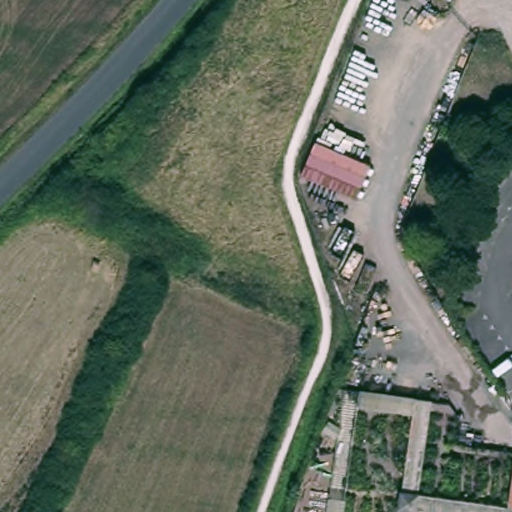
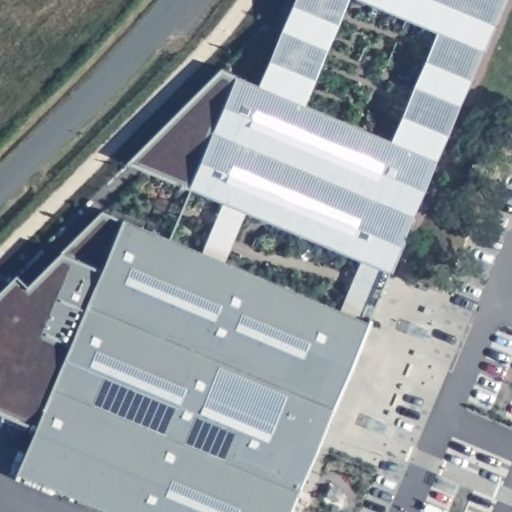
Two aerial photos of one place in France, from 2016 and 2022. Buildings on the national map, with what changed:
new [(236,75),(260,85),(295,0),(348,0),(306,102),(392,139),(437,31),(365,0),(504,0),(391,270),(382,267),(362,258),(245,210),(224,201),(190,187),(236,75)]
new [(127,161),(220,68),(236,75),(190,187),(127,161)]
new [(0,290),(16,273),(27,283),(62,250),(102,210),(124,217),(203,251),(224,201),(245,210),(226,260),(341,308),(362,258),(382,267),(361,317),(370,321),(291,512),(115,512),(18,471),(36,425),(0,410),(0,290)]
demolished [(356,406),(358,390),(432,401),(420,493),(512,502),(512,512),(398,512),(410,411),(356,406)]

